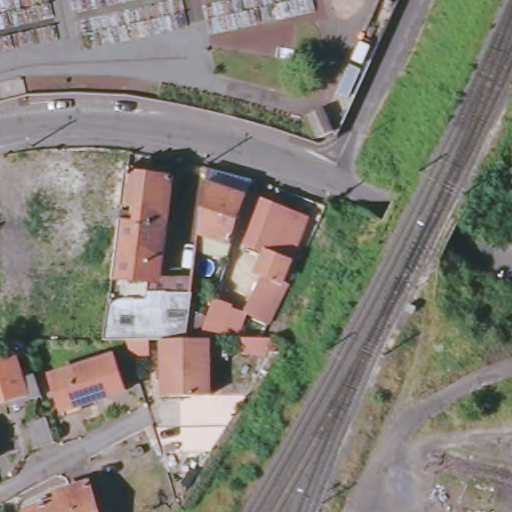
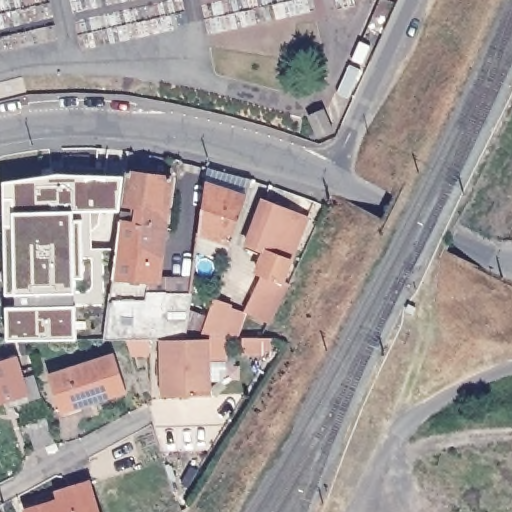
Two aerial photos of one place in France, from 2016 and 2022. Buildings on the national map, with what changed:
demolished [(68,198),(64,230),(43,228),(41,244),(21,242),(25,192),(28,192),(31,162),(124,173),(120,204),(68,198)]
unchanged [(205,185),(207,170),(255,182),(249,199),(248,204),(233,246),(198,236),(205,186),(205,185)]
new [(120,204),(119,211),(73,210),(74,218),(83,219),(84,278),(75,278),(75,292),(73,292),(73,304),(76,304),(78,338),(6,340),(5,306),(15,306),(14,293),(6,294),(3,181),(59,172),(124,176),(120,204)]
unchanged [(163,228),(153,227),(118,223),(120,204),(124,173),(171,179),(163,228)]
unchanged [(271,276),(263,273),(271,251),(253,245),(270,204),(315,219),(311,227),(321,230),(317,239),(312,249),(304,246),(289,282),(294,284),(276,321),(253,310),(271,276)]
demolished [(91,220),(92,217),(105,218),(104,221),(107,221),(101,263),(85,261),(88,238),(77,237),(80,218),(91,220)]
unchanged [(118,223),(153,227),(145,278),(187,280),(193,280),(193,282),(191,287),(191,293),(194,294),(191,316),(188,340),(160,341),(127,341),(101,342),(118,223)]
unchanged [(231,292),(219,288),(228,262),(241,266),(231,292)]
unchanged [(161,376),(160,341),(188,340),(201,340),(208,340),(209,395),(170,397),(161,397),(161,376)]
unchanged [(115,351),(126,389),(59,409),(48,370),(115,351)]
unchanged [(0,401),(0,359),(14,355),(21,380),(29,377),(34,376),(40,395),(27,400),(24,393),(0,401)]
unchanged [(45,417),(52,441),(33,447),(26,423),(45,417)]
unchanged [(98,512),(66,512),(61,497),(59,489),(89,481),(98,512)]
unchanged [(61,497),(66,512),(26,512),(25,509),(61,497)]

